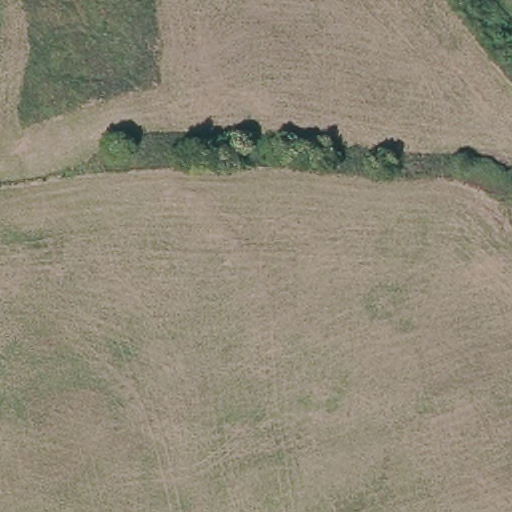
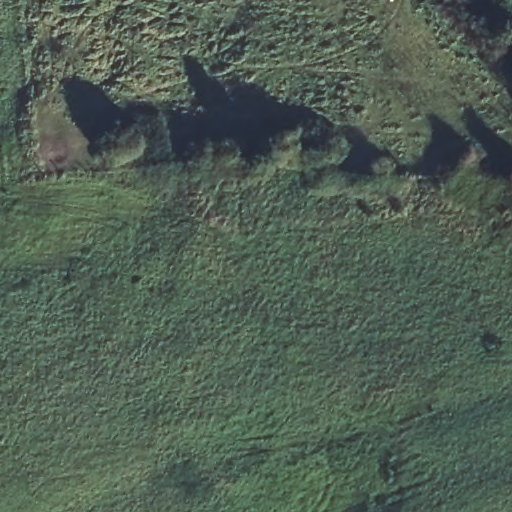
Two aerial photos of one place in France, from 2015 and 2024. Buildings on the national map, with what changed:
[]

